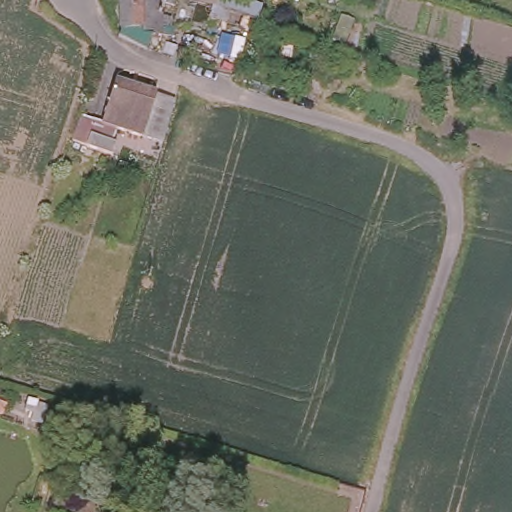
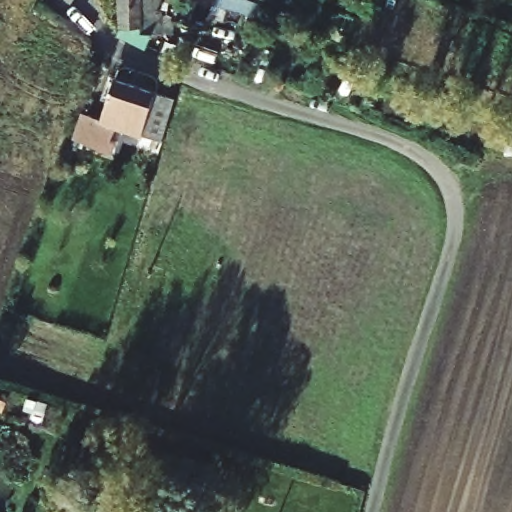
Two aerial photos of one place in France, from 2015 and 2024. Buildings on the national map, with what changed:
unchanged [(154,2),(154,32),(140,32),(140,47),(112,35),(117,27),(116,0),(168,0),(169,1),(154,2)]
unchanged [(262,13),(258,27),(200,9),(177,2),(178,0),(221,0),(221,1),(262,13)]
unchanged [(175,89),(159,144),(139,137),(143,123),(117,115),(112,130),(117,132),(112,143),(72,129),(82,103),(103,110),(115,70),(175,89)]

